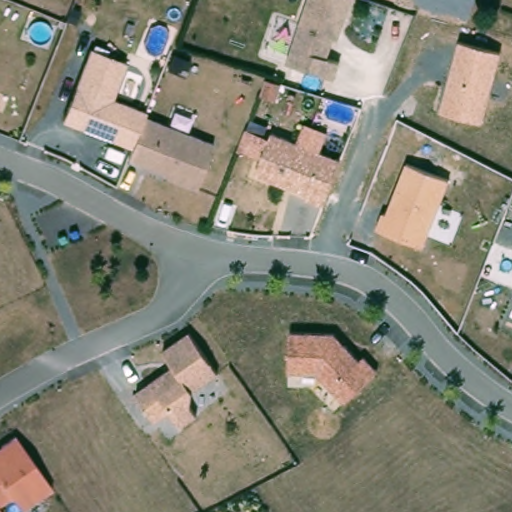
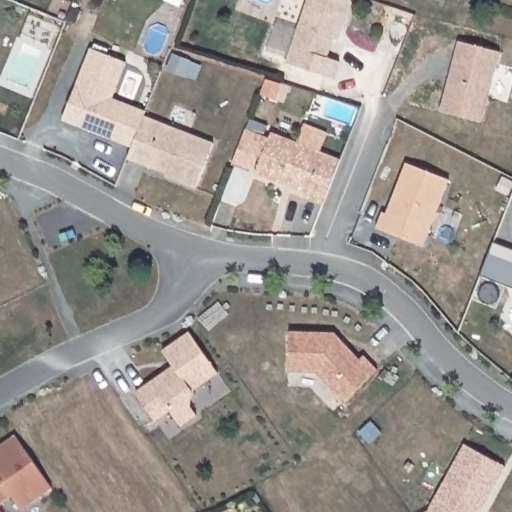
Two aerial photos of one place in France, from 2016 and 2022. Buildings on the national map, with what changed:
unchanged [(330,42),(326,41),(320,60),(333,64),(327,81),(280,66),(301,0),(344,0),(330,42)]
unchanged [(501,50),(482,123),(438,110),(458,38),(501,50)]
unchanged [(126,64),(112,99),(145,112),(144,117),(215,143),(195,189),(127,161),(133,148),(64,123),(90,51),(126,64)]
unchanged [(341,162),(326,208),(257,175),(272,135),(341,162)]
unchanged [(449,179),(423,246),(375,228),(382,211),(387,213),(406,162),(449,179)]
unchanged [(217,372),(190,392),(190,408),(196,415),(180,426),(169,411),(154,421),(134,391),(171,365),(160,348),(190,329),(217,372)]
unchanged [(335,334),(357,362),(363,358),(377,370),(342,403),(319,377),(288,377),(290,333),(335,334)]
unchanged [(16,439),(51,490),(20,510),(11,498),(0,505),(0,449),(16,439)]
new [(483,512),(424,512),(428,509),(463,444),(506,466),(483,512)]

